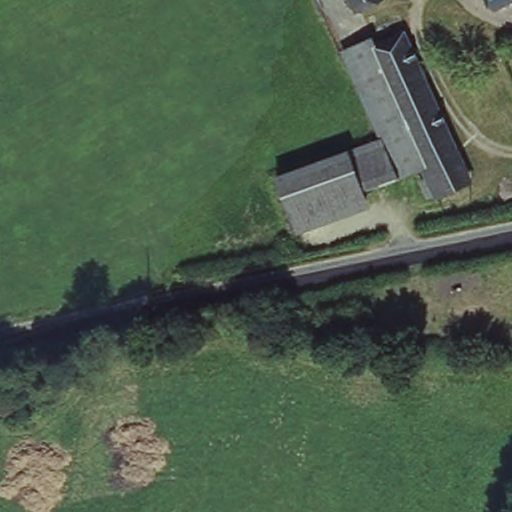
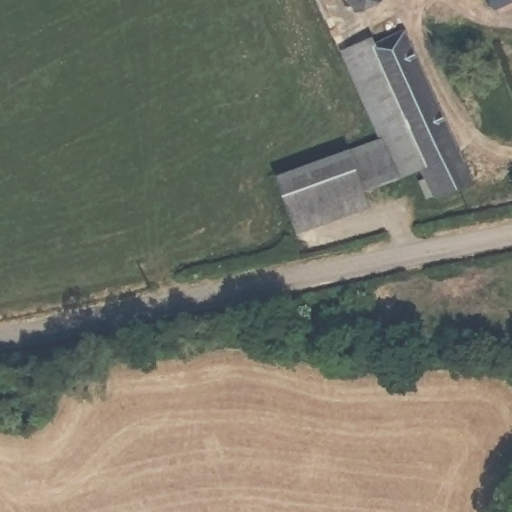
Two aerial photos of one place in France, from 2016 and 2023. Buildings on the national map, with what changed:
unchanged [(382,0),(352,14),(346,0),(382,0)]
unchanged [(494,0),(512,0),(512,9),(501,14),(494,0)]
unchanged [(423,167),(365,192),(371,207),(300,237),(276,180),(348,149),(378,136),(342,50),(377,35),(380,40),(411,26),(478,186),(438,203),(423,167)]

